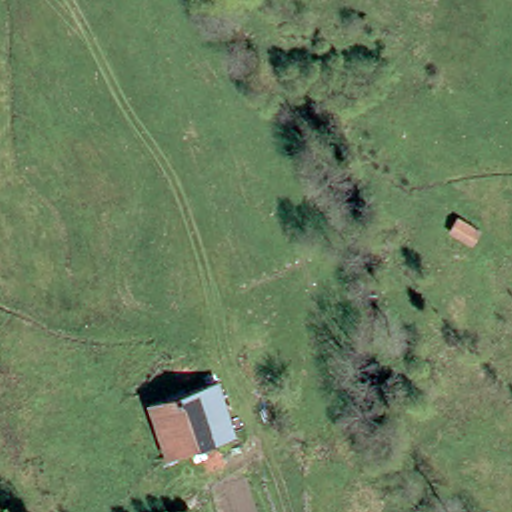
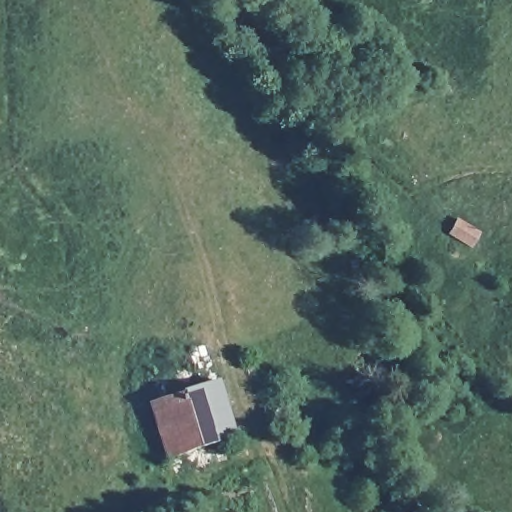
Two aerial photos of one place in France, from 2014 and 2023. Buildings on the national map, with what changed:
unchanged [(168,461),(150,401),(212,377),(238,441),(211,448),(168,461)]

